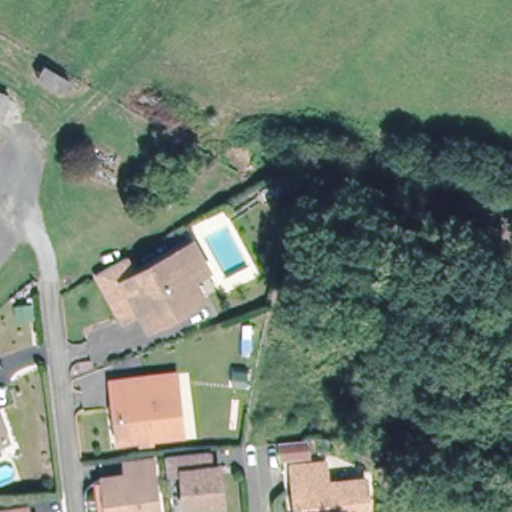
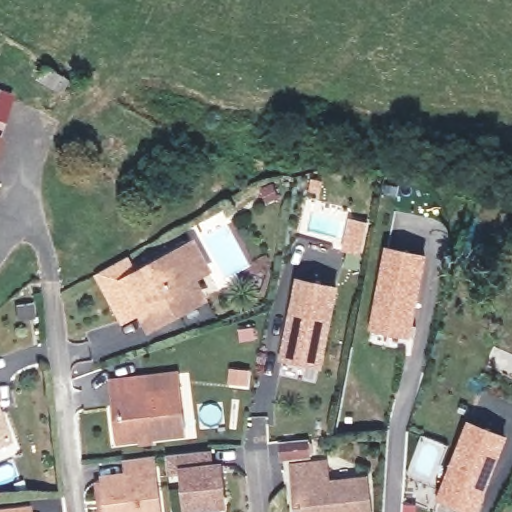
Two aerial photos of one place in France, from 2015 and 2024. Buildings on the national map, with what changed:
unchanged [(46,66),(70,81),(62,93),(38,79),(46,66)]
unchanged [(5,91),(0,105),(0,89),(5,91)]
new [(430,251),(412,337),(370,330),(386,244),(430,251)]
unchanged [(146,318),(141,308),(123,318),(97,272),(121,260),(127,257),(136,273),(177,250),(179,253),(194,245),(206,265),(191,274),(203,297),(176,312),(150,326),(146,318)]
new [(340,285),(322,370),(279,360),(297,276),(340,285)]
unchanged [(34,315),(18,317),(17,305),(32,303),(34,315)]
unchanged [(248,367),(245,383),(230,380),(233,365),(248,367)]
unchanged [(114,400),(112,381),(144,377),(146,393),(179,390),(184,432),(124,440),(119,440),(114,400)]
new [(510,436),(478,512),(468,512),(436,498),(468,419),(510,436)]
unchanged [(4,445),(0,446),(0,434),(4,445)]
unchanged [(311,455),(283,459),(281,441),(290,440),(308,438),(311,455)]
unchanged [(222,505),(187,509),(182,470),(169,472),(167,455),(209,450),(211,466),(218,465),(222,505)]
unchanged [(99,477),(121,474),(120,460),(136,457),(148,456),(155,512),(103,512),(99,477)]
unchanged [(293,465),(326,461),(327,481),(367,478),(370,512),(298,512),(293,465)]
unchanged [(27,508),(28,512),(0,512),(0,511),(27,508)]

